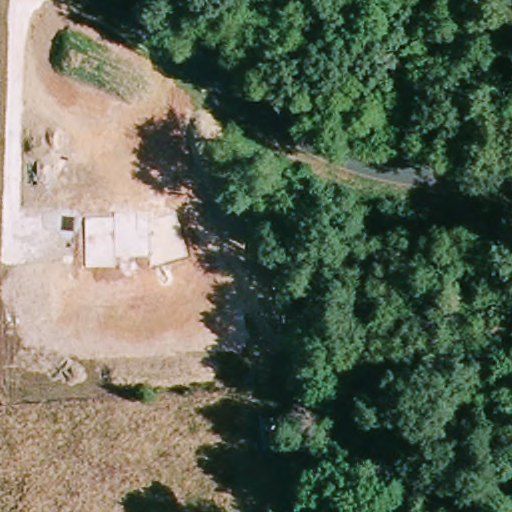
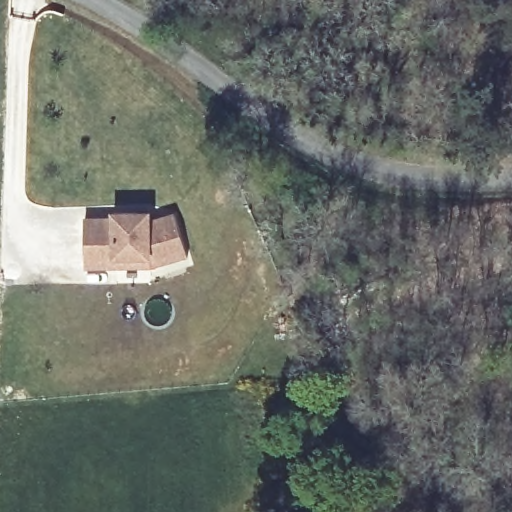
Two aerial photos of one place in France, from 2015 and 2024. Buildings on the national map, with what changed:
new [(187,256),(153,267),(85,267),(85,217),(113,215),(113,211),(152,211),(152,218),(174,212),(187,256)]

